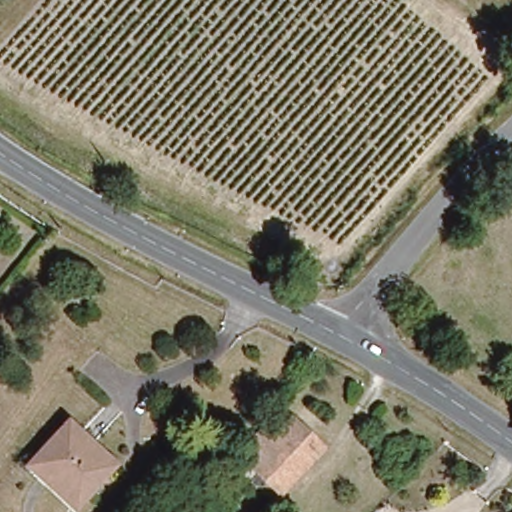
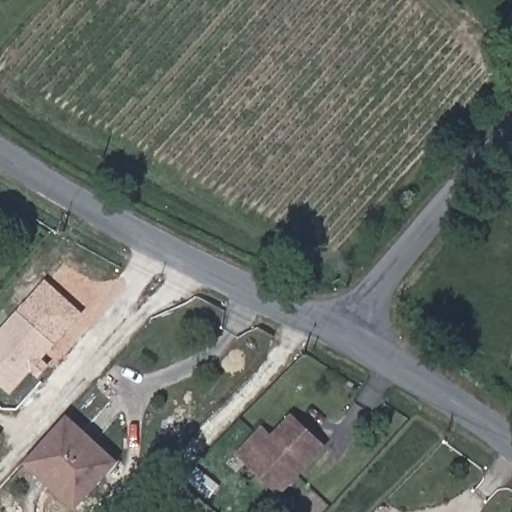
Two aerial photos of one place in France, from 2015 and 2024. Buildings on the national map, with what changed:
new [(16,312),(46,280),(84,315),(54,346),(19,314),(16,312)]
new [(54,346),(10,395),(0,386),(0,335),(19,314),(54,346)]
unchanged [(39,475),(28,466),(67,422),(114,464),(83,499),(75,508),(39,475)]
unchanged [(242,478),(253,467),(245,459),(268,434),(278,444),(297,424),(328,453),(286,498),(266,480),(255,491),(242,478)]

